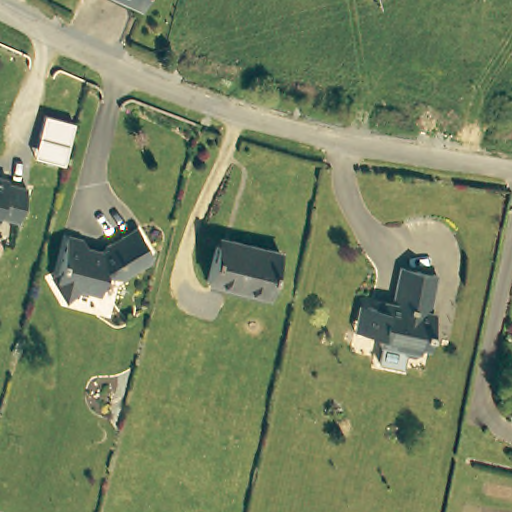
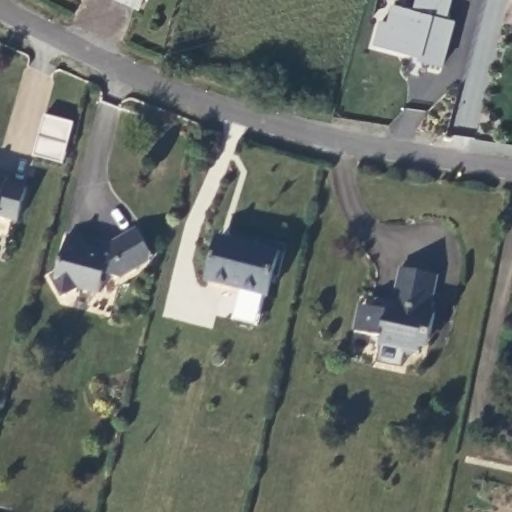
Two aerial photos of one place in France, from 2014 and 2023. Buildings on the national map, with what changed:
unchanged [(119,0),(146,0),(141,10),(119,0)]
new [(448,19),(457,21),(444,66),(416,60),(417,55),(375,45),(380,21),(387,22),(392,4),(413,9),(415,0),(452,0),(448,19)]
unchanged [(64,163),(34,156),(45,115),(73,122),(64,163)]
unchanged [(31,192),(23,222),(5,218),(3,225),(0,224),(0,179),(10,182),(9,186),(31,192)]
unchanged [(205,280),(216,234),(277,250),(266,295),(205,280)]
unchanged [(66,305),(56,290),(63,277),(71,246),(86,250),(93,263),(101,264),(142,240),(156,263),(152,266),(150,275),(127,288),(107,283),(102,303),(79,298),(66,305)]
unchanged [(366,307),(374,308),(392,312),(393,305),(399,306),(407,270),(445,278),(437,316),(440,317),(436,339),(429,338),(426,353),(425,354),(422,358),(418,359),(413,359),(409,358),(406,354),(406,350),(385,345),(386,338),(368,334),(360,332),(366,307)]

